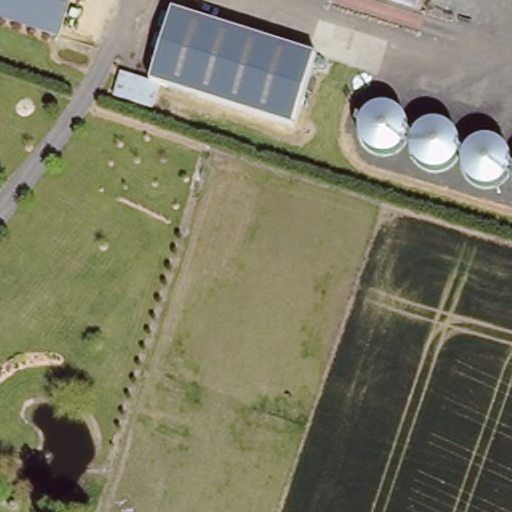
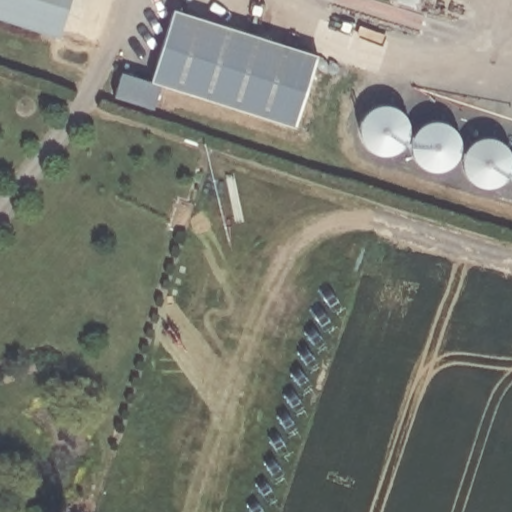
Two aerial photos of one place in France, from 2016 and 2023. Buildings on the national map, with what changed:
unchanged [(0,16),(0,0),(69,0),(58,35),(0,16)]
unchanged [(317,56),(297,128),(150,80),(177,11),(317,56)]
unchanged [(374,107),(389,106),(512,145),(512,196),(372,152),(363,145),(359,125),(362,115),(374,107)]

